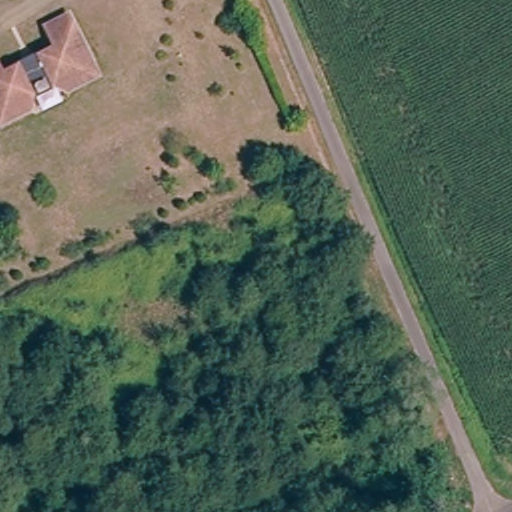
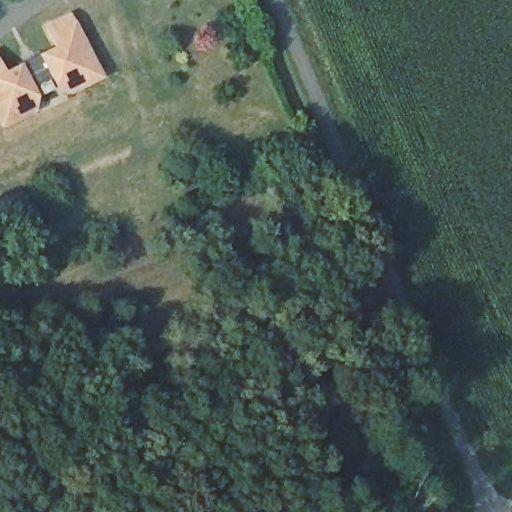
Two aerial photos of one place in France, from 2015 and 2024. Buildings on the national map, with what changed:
unchanged [(0,117),(0,68),(5,76),(58,44),(44,22),(65,10),(93,58),(99,69),(87,78),(78,84),(67,87),(62,85),(57,80),(36,92),(38,100),(36,108),(20,118),(6,127),(0,117)]

